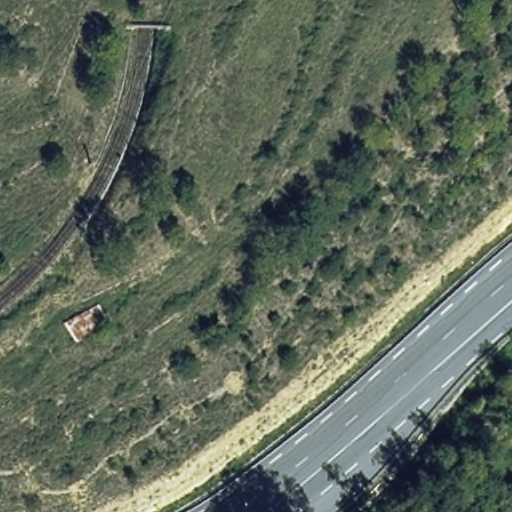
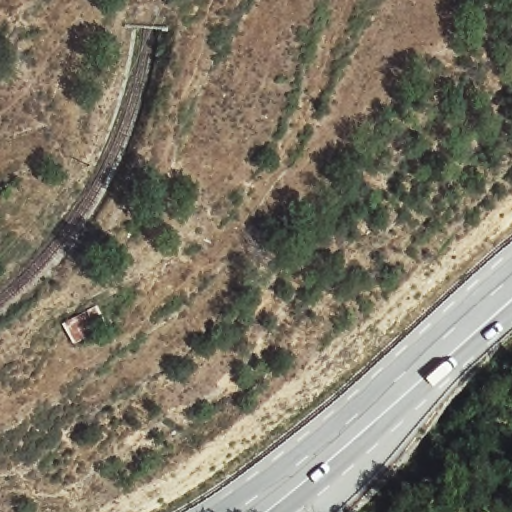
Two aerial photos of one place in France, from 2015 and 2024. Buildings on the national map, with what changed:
unchanged [(63,329),(98,312),(109,332),(74,347),(63,329)]

